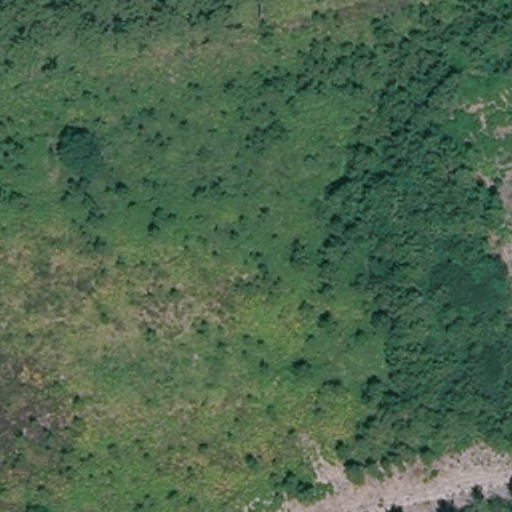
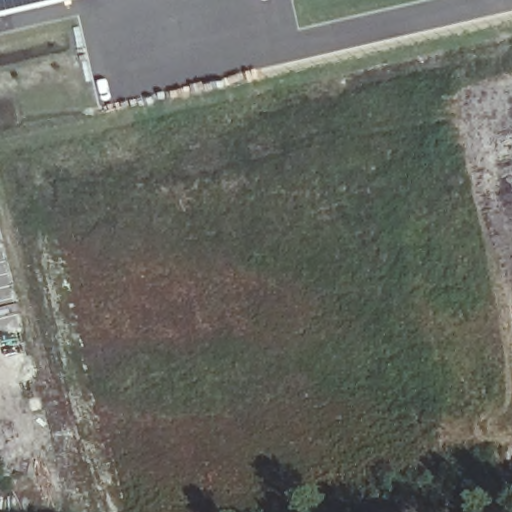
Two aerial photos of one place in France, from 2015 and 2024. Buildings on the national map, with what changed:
new [(0,15),(0,0),(57,0),(4,14),(0,15)]

